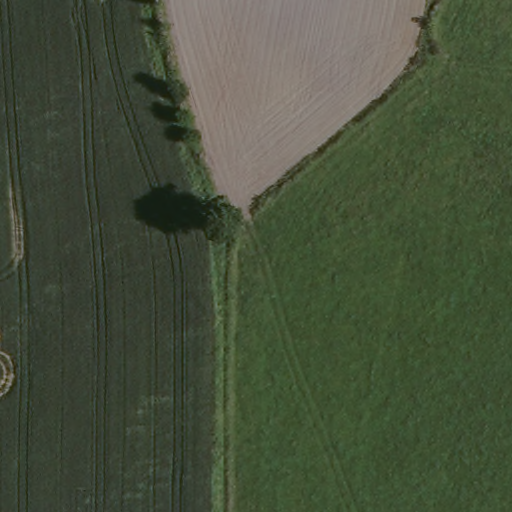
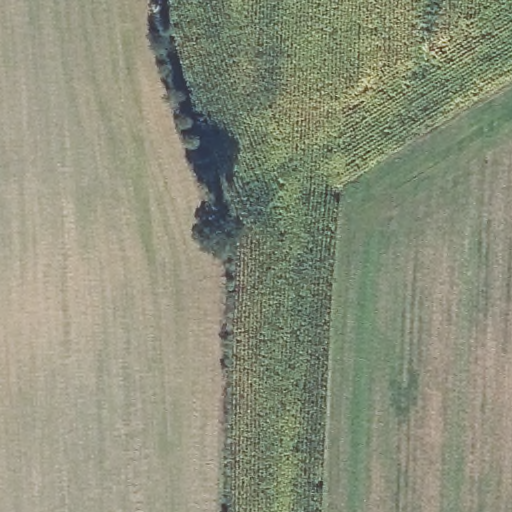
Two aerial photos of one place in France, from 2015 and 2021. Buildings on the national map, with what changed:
[]

